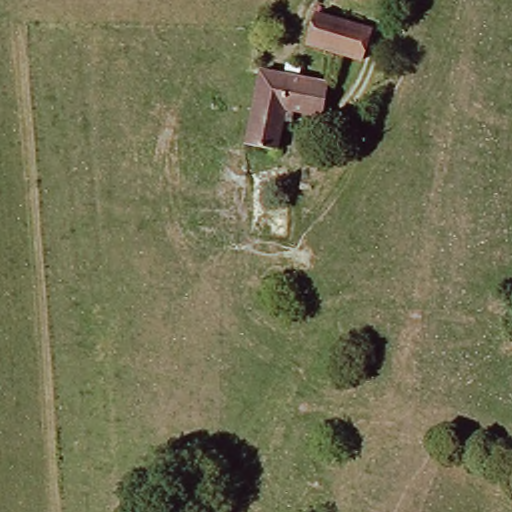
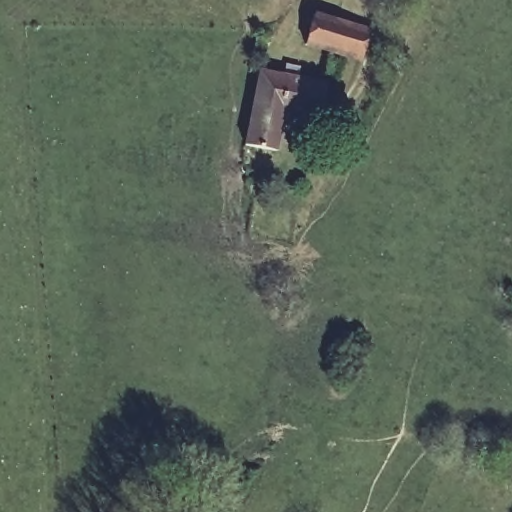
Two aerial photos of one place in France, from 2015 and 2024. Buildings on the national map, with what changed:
unchanged [(377,27),(367,64),(310,48),(320,14),(377,27)]
unchanged [(265,71),(334,84),(327,117),(290,111),(282,151),(252,146),(263,77),(265,71)]

